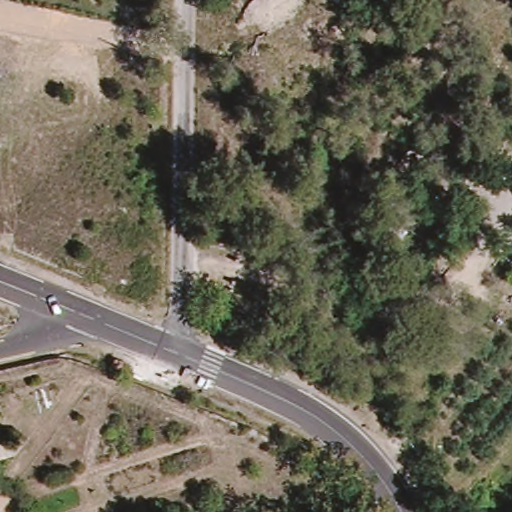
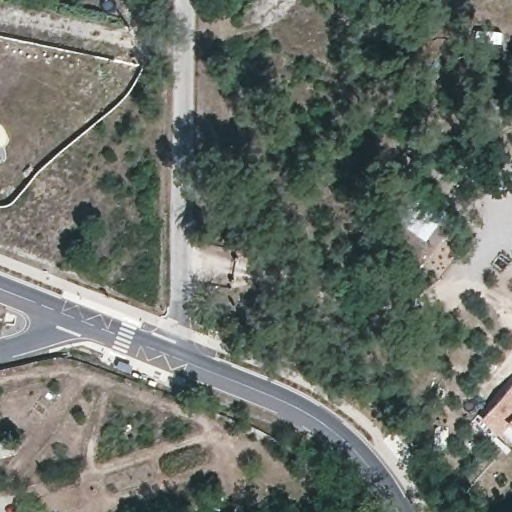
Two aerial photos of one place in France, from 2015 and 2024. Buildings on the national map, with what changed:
unchanged [(414,188),(391,172),(404,154),(427,170),(414,188)]
new [(512,382),(512,427),(507,422),(497,435),(480,419),(512,382)]

